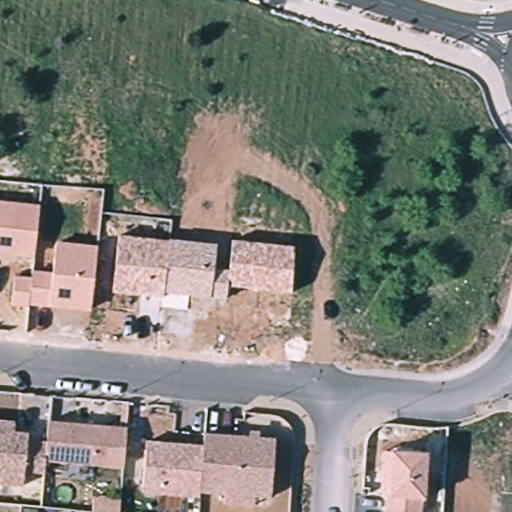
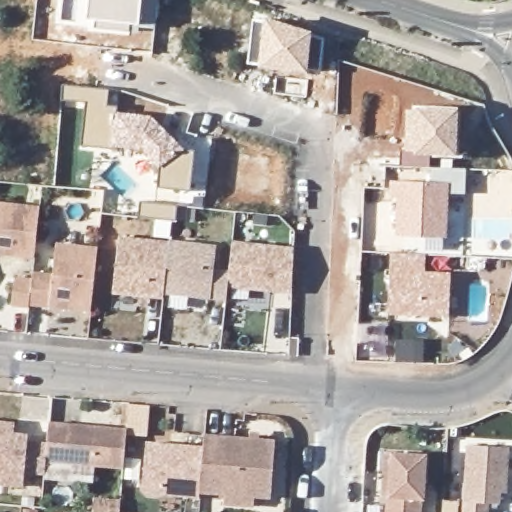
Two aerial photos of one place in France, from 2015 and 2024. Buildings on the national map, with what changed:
new [(139,27),(138,31),(94,27),(94,19),(88,17),(90,0),(157,0),(155,29),(139,27)]
new [(312,36),(323,39),(319,69),(308,67),(307,72),(259,67),(260,64),(248,64),(253,20),(265,21),(266,16),(313,32),(312,36)]
new [(106,105),(117,106),(116,112),(150,115),(185,149),(194,150),(190,190),(156,185),(159,165),(157,166),(138,147),(116,145),(115,149),(82,145),(86,102),(63,100),(63,85),(109,90),(106,105)]
new [(400,166),(400,150),(405,150),(407,109),(414,110),(415,106),(458,109),(457,155),(428,155),(430,167),(400,166)]
new [(390,195),(390,181),(432,182),(433,167),(466,167),(466,195),(449,194),(446,237),(395,235),(398,198),(390,195)]
unchanged [(40,205),(36,256),(0,255),(0,200),(40,205)]
unchanged [(228,286),(226,299),(163,292),(162,297),(112,292),(118,236),(170,241),(170,238),(216,243),(213,268),(228,270),(232,241),(293,247),(292,295),(228,286)]
unchanged [(47,306),(30,303),(28,306),(12,304),(15,276),(32,278),(33,270),(52,271),(56,243),(96,246),(90,312),(47,306)]
new [(425,270),(450,272),(448,316),(389,313),(391,252),(426,254),(425,270)]
unchanged [(126,429),(123,468),(45,462),(46,452),(47,443),(49,423),(126,429)]
unchanged [(46,452),(45,462),(45,475),(25,473),(23,487),(0,485),(0,432),(28,435),(27,442),(47,443),(46,452)]
unchanged [(275,445),(270,503),(200,497),(205,438),(275,445)]
new [(467,445),(509,447),(507,490),(500,490),(500,502),(488,502),(487,512),(464,512),(464,499),(467,445)]
unchanged [(153,497),(146,497),(142,491),(146,446),(203,451),(198,501),(153,497)]
unchanged [(390,451),(426,454),(423,501),(423,512),(386,512),(387,495),(390,451)]

